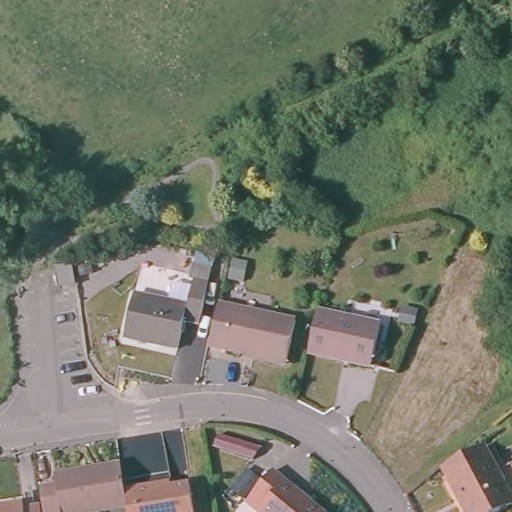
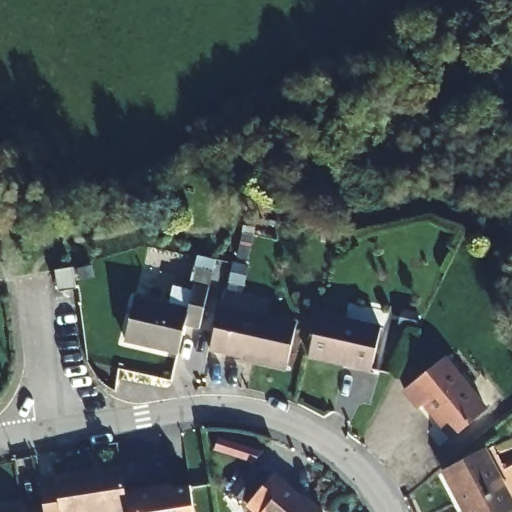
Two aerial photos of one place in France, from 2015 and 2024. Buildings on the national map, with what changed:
unchanged [(74,260),(78,283),(59,284),(55,284),(51,261),(74,260)]
unchanged [(175,358),(128,342),(140,298),(181,312),(189,280),(207,287),(194,332),(184,328),(175,358)]
unchanged [(284,364),(207,340),(219,297),(294,321),(284,364)]
unchanged [(318,308),(379,324),(371,367),(309,352),(318,308)]
new [(445,355),(487,405),(450,437),(421,403),(417,407),(402,391),(445,355)]
unchanged [(487,448),(499,470),(512,464),(512,508),(504,512),(462,512),(441,471),(487,448)]
unchanged [(250,502),(275,469),(322,512),(261,512),(250,502)]
unchanged [(37,496),(56,492),(56,482),(119,471),(124,512),(40,512),(37,496)]
unchanged [(172,484),(172,488),(191,485),(195,512),(124,512),(122,492),(172,484)]
unchanged [(21,510),(21,512),(7,512),(21,510)]

